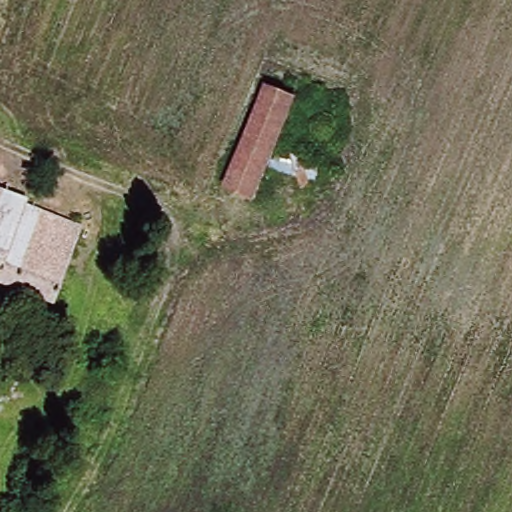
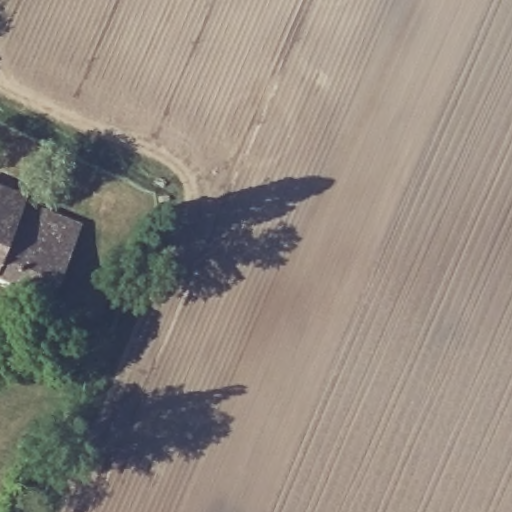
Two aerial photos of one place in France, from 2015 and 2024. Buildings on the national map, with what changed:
demolished [(292,100),(250,198),(223,187),(264,87),(292,100)]
unchanged [(47,306),(0,288),(0,195),(22,203),(21,208),(79,229),(47,306)]

